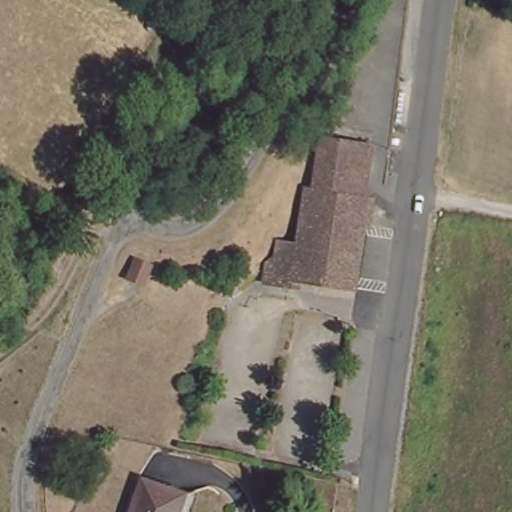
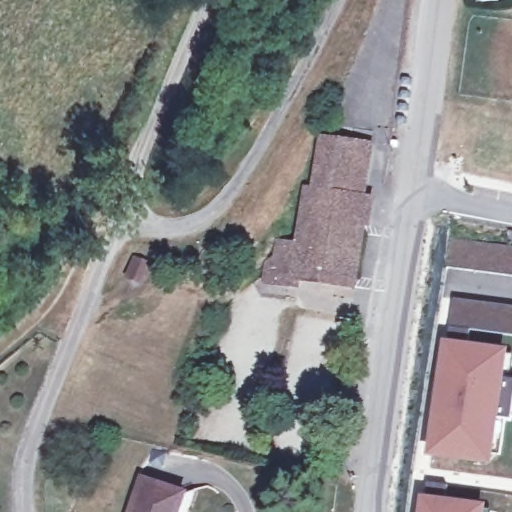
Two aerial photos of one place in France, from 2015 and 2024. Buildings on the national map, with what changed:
unchanged [(264,283),(266,276),(267,263),(273,257),(275,253),(281,241),(297,245),(308,192),(316,193),(326,140),(352,145),(377,150),(373,172),(367,204),(372,205),(354,295),(305,285),(293,283),(293,290),(264,283)]
new [(451,236),(512,246),(512,277),(447,267),(451,236)]
unchanged [(142,272),(136,292),(121,286),(127,267),(142,272)]
new [(467,343),(447,340),(454,298),(512,306),(512,336),(468,329),(467,343)]
new [(491,466),(427,456),(442,340),(447,340),(467,343),(509,350),(505,380),(512,381),(512,416),(512,420),(499,417),(491,466)]
new [(447,485),(445,498),(487,505),(486,512),(418,512),(420,495),(425,496),(427,483),(447,485)]
unchanged [(144,485),(186,500),(181,512),(133,512),(144,485)]

